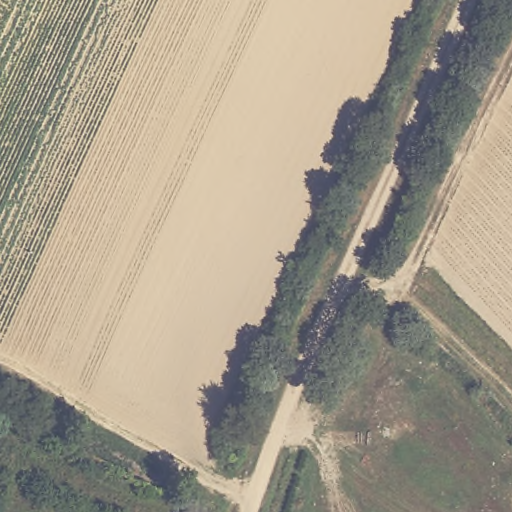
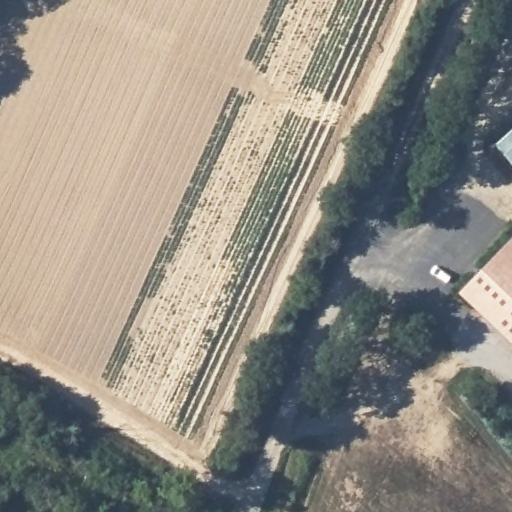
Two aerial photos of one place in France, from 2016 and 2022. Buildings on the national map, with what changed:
new [(496,146),(512,132),(512,165),(496,146)]
new [(512,237),(512,343),(460,293),(512,237)]

